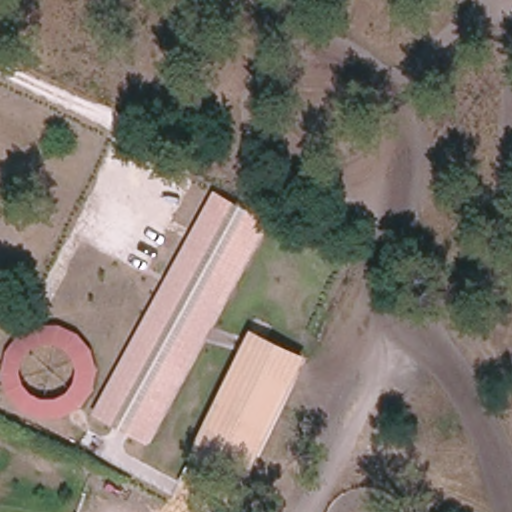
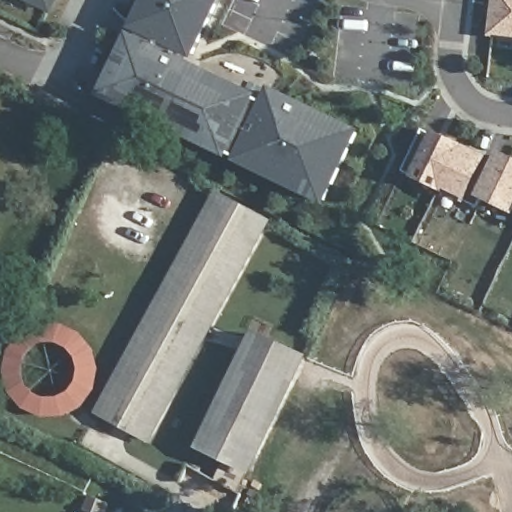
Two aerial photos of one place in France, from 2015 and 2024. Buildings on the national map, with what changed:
new [(27,0),(62,0),(55,15),(27,0)]
new [(262,96),(270,86),(361,131),(329,205),(97,91),(142,0),(222,0),(195,61),(262,96)]
new [(487,36),(494,0),(512,0),(512,39),(487,36)]
new [(493,160),(500,153),(512,158),(512,213),(486,202),(481,207),(403,172),(422,130),(429,135),(436,133),(493,160)]
unchanged [(94,414),(215,191),(270,221),(149,445),(94,414)]
unchanged [(98,370),(95,390),(82,407),(64,418),(44,420),(24,412),(8,393),(4,371),(7,353),(20,333),(37,325),(61,325),(80,334),(93,351),(98,370)]
unchanged [(251,477),(196,450),(253,331),(308,357),(251,477)]

